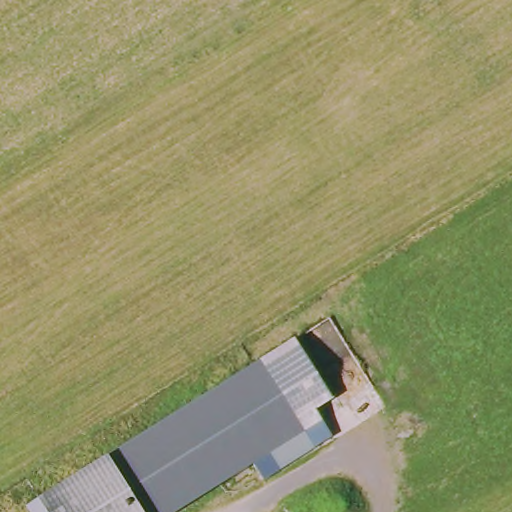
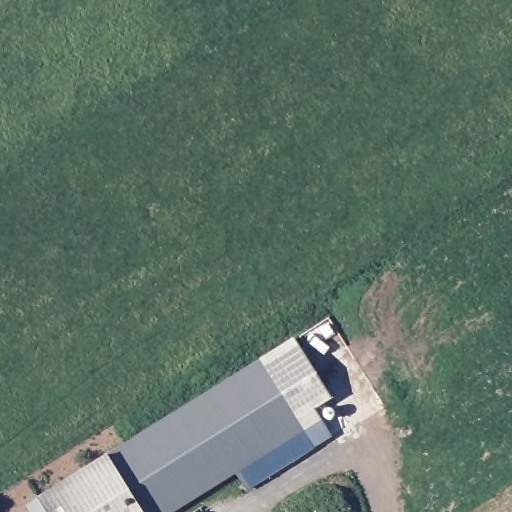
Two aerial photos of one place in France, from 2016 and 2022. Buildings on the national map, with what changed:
unchanged [(339,397),(321,410),(338,438),(271,479),(261,463),(181,512),(36,512),(33,507),(304,339),(339,397)]

